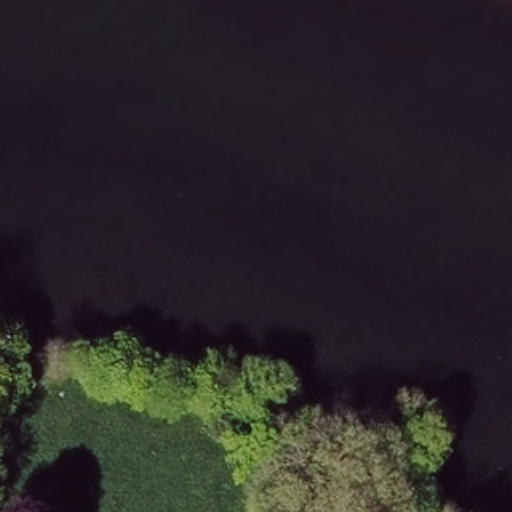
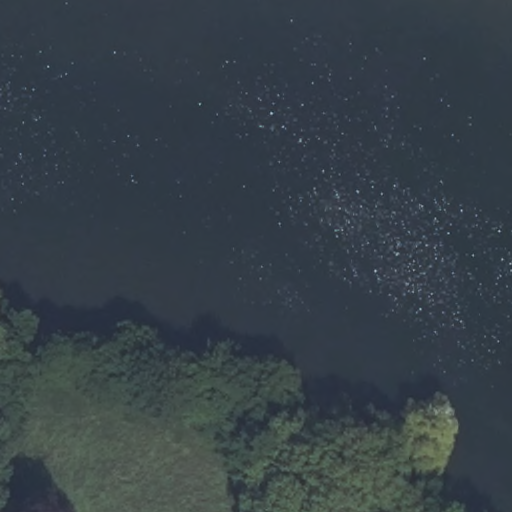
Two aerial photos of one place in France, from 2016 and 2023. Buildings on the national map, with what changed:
unchanged [(301,401),(298,411),(294,410),(291,421),(276,417),(278,406),(275,405),(277,395),(281,396),(283,387),(299,390),(297,400),(301,401)]

